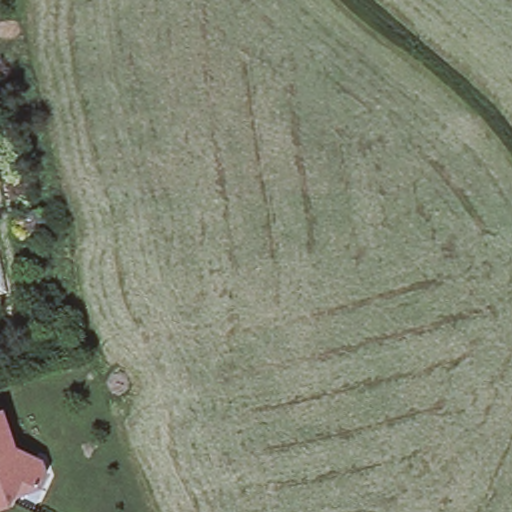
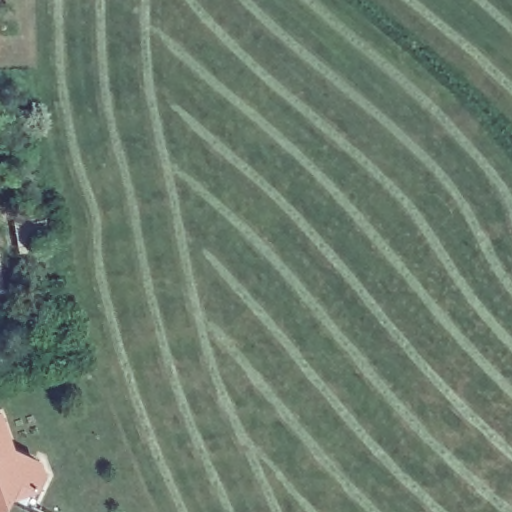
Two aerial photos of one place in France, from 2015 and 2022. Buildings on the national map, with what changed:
unchanged [(0,289),(0,261),(5,287),(0,289)]
unchanged [(38,472),(43,482),(35,495),(18,487),(8,512),(0,512),(0,425),(11,458),(38,472)]

